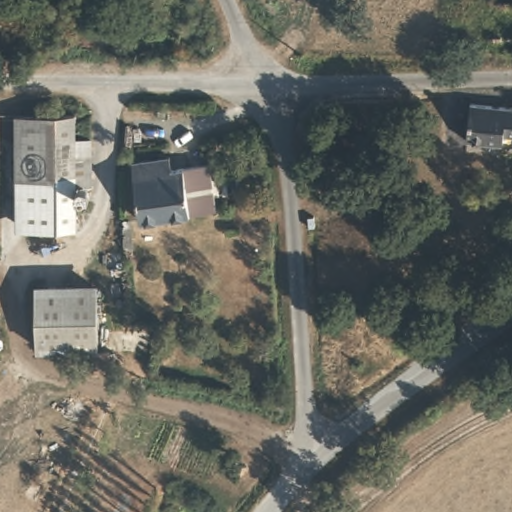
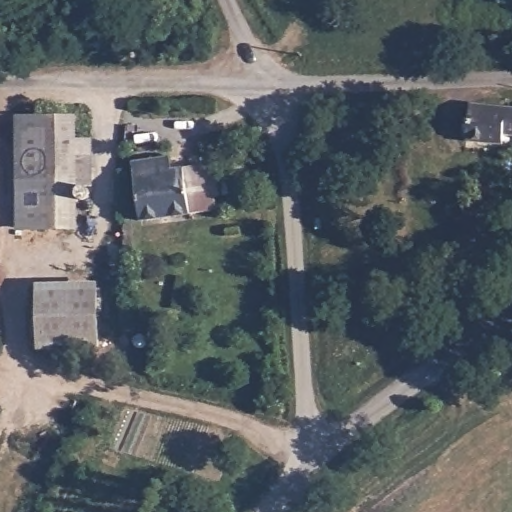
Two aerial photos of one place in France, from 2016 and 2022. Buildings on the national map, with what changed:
unchanged [(503,140),(485,139),(471,138),(467,137),(469,103),(489,104),(512,105),(512,130),(502,130),(503,140)]
unchanged [(35,213),(35,201),(32,201),(32,180),(12,179),(12,143),(32,143),(32,115),(66,115),(66,154),(82,154),(82,186),(66,186),(67,200),(67,213),(35,213)]
unchanged [(143,217),(137,157),(181,151),(182,164),(192,163),(197,211),(143,217)]
unchanged [(222,208),(197,211),(192,163),(217,160),(222,208)]
unchanged [(95,345),(35,346),(34,286),(94,285),(95,345)]

